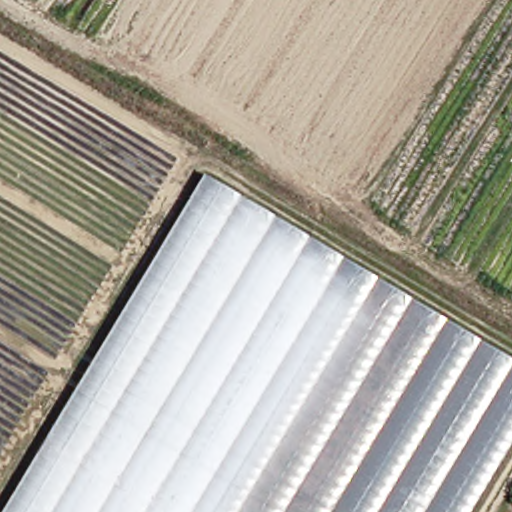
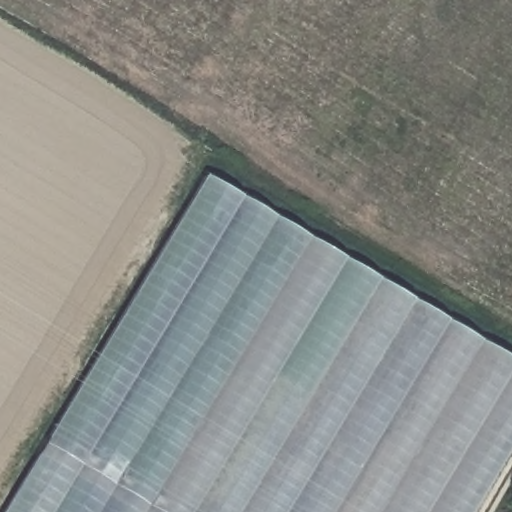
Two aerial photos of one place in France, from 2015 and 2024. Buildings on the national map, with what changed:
unchanged [(512,445),(472,512),(7,512),(208,173),(512,357),(512,445)]

